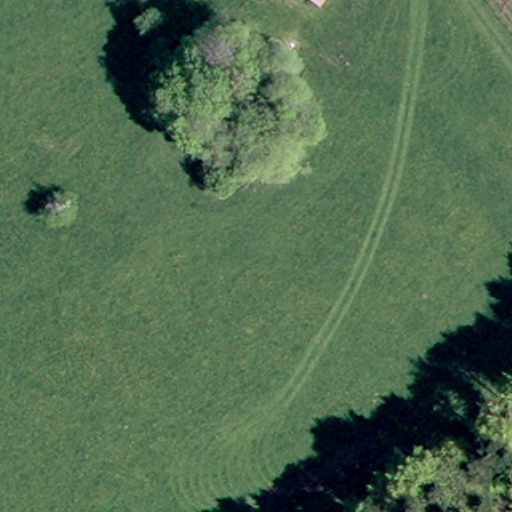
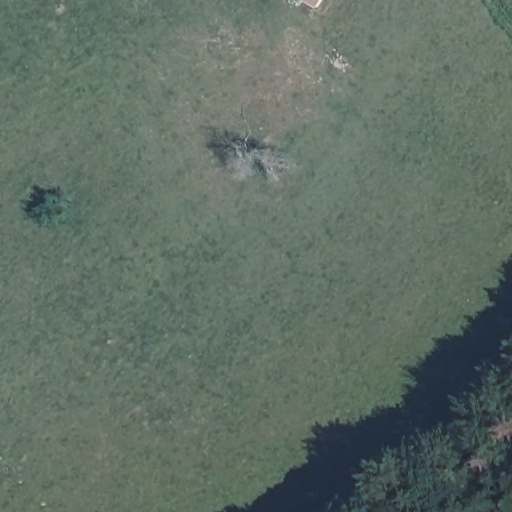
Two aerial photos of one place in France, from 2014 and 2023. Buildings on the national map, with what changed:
unchanged [(320,9),(305,0),(327,0),(320,9)]

